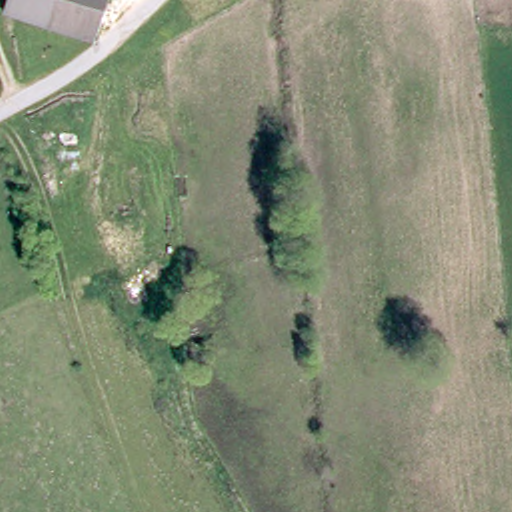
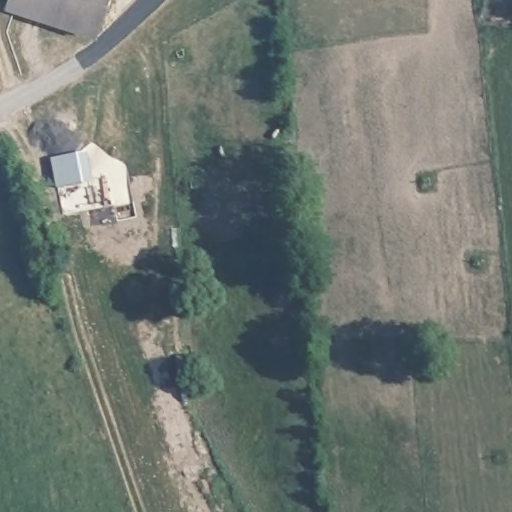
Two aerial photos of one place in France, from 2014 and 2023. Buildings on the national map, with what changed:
unchanged [(12,0),(108,0),(94,37),(9,10),(12,0)]
new [(85,151),(91,181),(81,183),(57,187),(51,158),(76,153),(85,151)]

